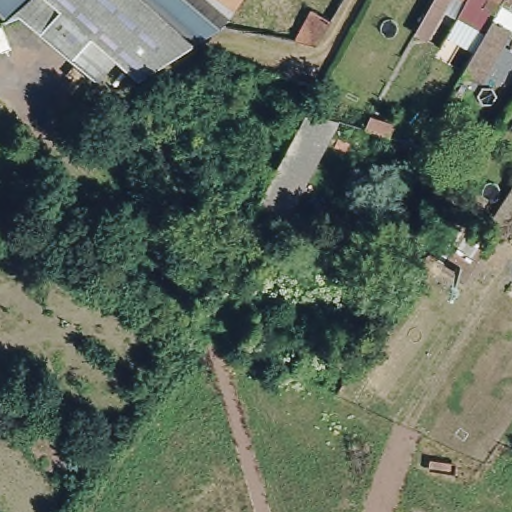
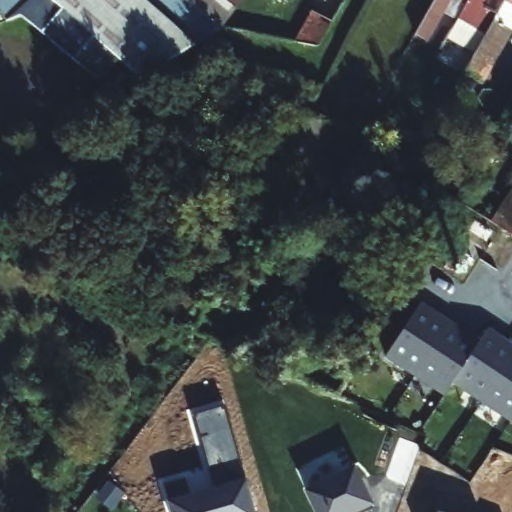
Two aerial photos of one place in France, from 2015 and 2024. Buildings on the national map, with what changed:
unchanged [(0,12),(0,0),(30,0),(8,20),(0,12)]
unchanged [(9,21),(8,20),(30,0),(61,0),(56,5),(35,24),(33,26),(22,17),(9,21)]
unchanged [(56,5),(61,0),(140,0),(193,46),(141,79),(119,59),(93,37),(56,5)]
unchanged [(219,30),(193,46),(140,0),(184,0),(217,28),(219,30)]
unchanged [(184,0),(240,0),(219,30),(217,28),(184,0)]
unchanged [(415,32),(433,0),(446,0),(424,37),(415,32)]
unchanged [(474,31),(456,20),(467,0),(502,0),(482,36),(474,31)]
unchanged [(502,0),(512,0),(512,19),(475,82),(469,79),(474,72),(464,66),(482,36),(502,0)]
unchanged [(72,59),(33,26),(35,24),(56,5),(93,37),(72,59)]
unchanged [(314,41),(312,43),(289,39),(309,7),(328,17),(314,41)]
unchanged [(119,59),(99,81),(72,59),(93,37),(119,59)]
unchanged [(306,111),(334,125),(274,237),(244,225),(306,111)]
unchanged [(43,157),(45,159),(23,181),(10,167),(33,146),(43,157)]
unchanged [(0,203),(0,180),(1,179),(13,191),(0,203)]
unchanged [(512,197),(512,212),(506,207),(512,197)]
new [(487,326),(512,343),(512,418),(510,421),(452,382),(443,395),(385,357),(424,302),(478,340),(487,326)]
new [(245,478),(254,512),(170,512),(168,502),(163,485),(186,478),(189,493),(214,486),(193,415),(223,406),(245,478)]
new [(316,483),(354,464),(374,503),(356,512),(315,512),(306,493),(318,487),(316,483)]

